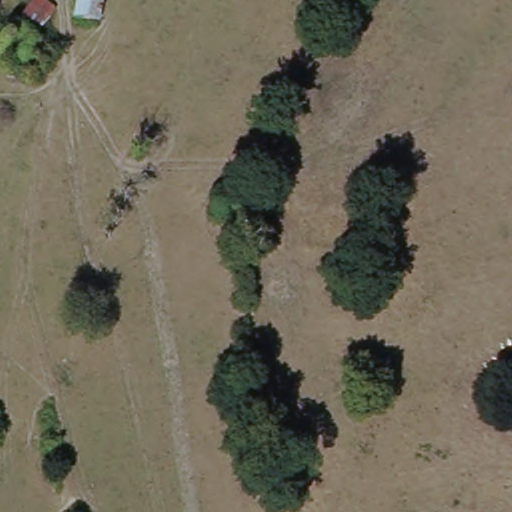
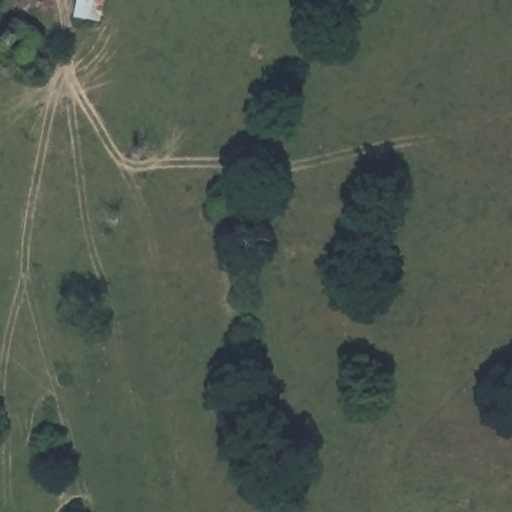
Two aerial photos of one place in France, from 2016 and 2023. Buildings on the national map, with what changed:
unchanged [(30,49),(11,38),(38,0),(43,0),(53,16),(30,49)]
unchanged [(104,0),(99,28),(74,26),(76,25),(79,0),(104,0)]

